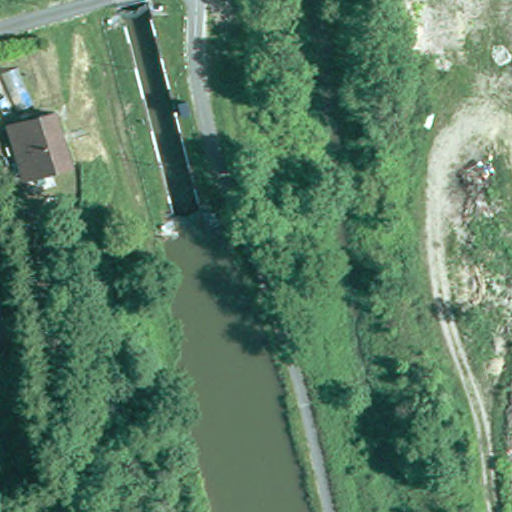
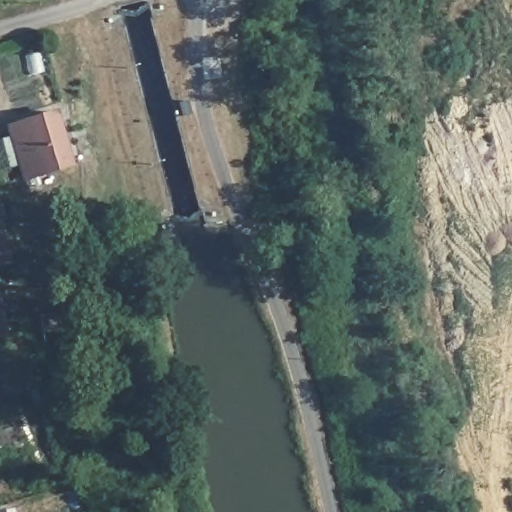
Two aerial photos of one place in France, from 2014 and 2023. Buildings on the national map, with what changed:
unchanged [(75,164),(27,179),(12,126),(58,111),(75,164)]
unchanged [(0,335),(0,302),(7,333),(0,335)]

